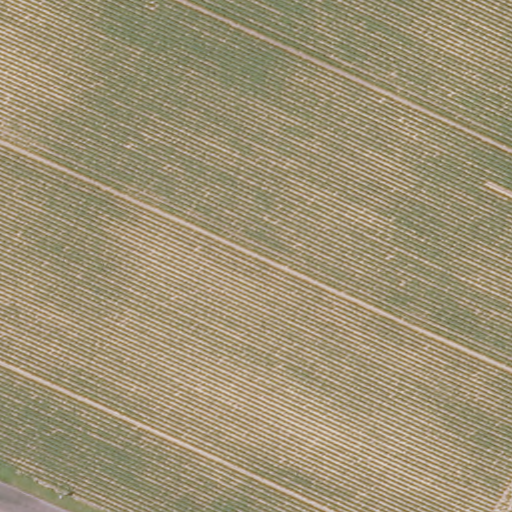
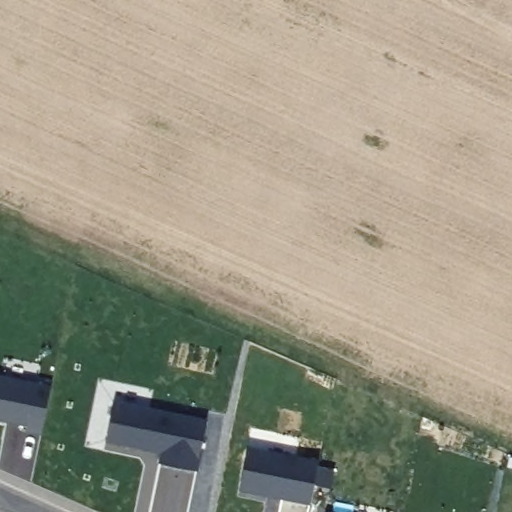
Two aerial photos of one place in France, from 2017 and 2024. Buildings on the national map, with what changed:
new [(27,430),(28,425),(0,420),(0,377),(52,387),(42,434),(27,430)]
new [(107,440),(115,401),(142,407),(134,446),(107,440)]
new [(208,420),(197,470),(161,463),(163,452),(158,451),(160,447),(150,445),(149,449),(134,446),(142,407),(208,420)]
new [(312,503),(280,497),(280,494),(270,492),(269,494),(241,488),(250,447),(320,461),(312,503)]

